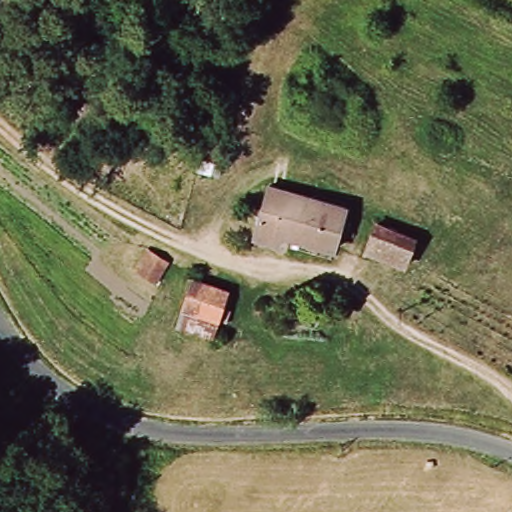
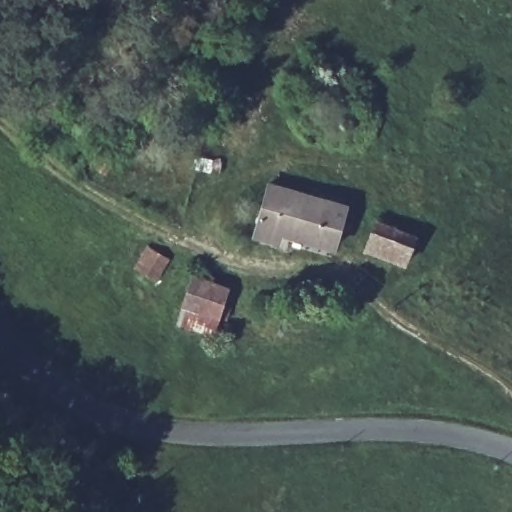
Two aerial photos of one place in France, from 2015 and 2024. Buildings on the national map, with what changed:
unchanged [(257,237),(273,206),(283,185),(340,210),(322,250),(286,234),(280,247),(257,237)]
unchanged [(370,244),(380,221),(381,219),(417,233),(405,260),(370,244)]
unchanged [(176,261),(166,280),(147,269),(159,250),(176,261)]
unchanged [(227,291),(211,335),(177,322),(194,278),(227,291)]

